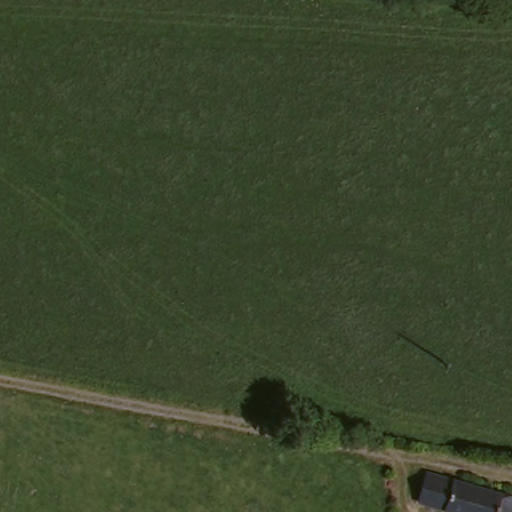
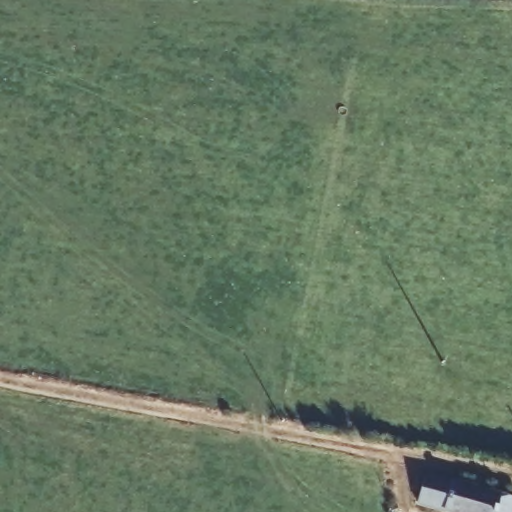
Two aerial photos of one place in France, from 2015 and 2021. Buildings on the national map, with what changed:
unchanged [(421,478),(512,493),(512,512),(441,512),(418,508),(421,478)]

